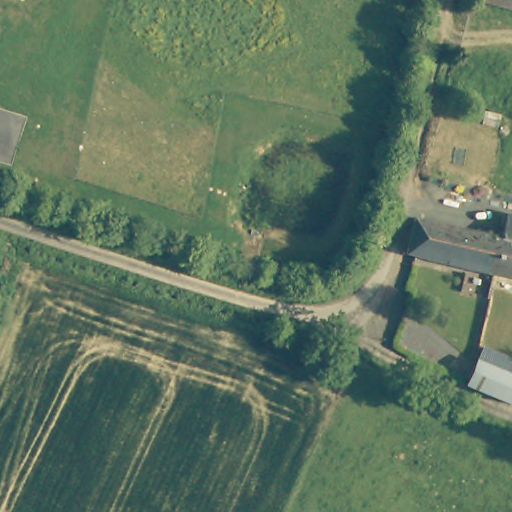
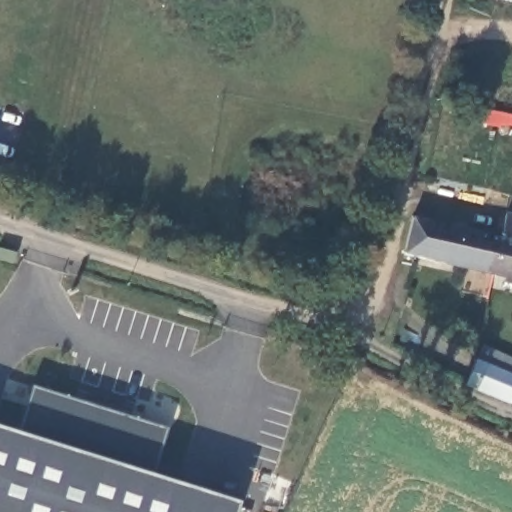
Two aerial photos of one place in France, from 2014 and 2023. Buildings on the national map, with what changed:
unchanged [(499,0),(512,0),(512,3),(499,0)]
unchanged [(501,234),(507,212),(512,213),(512,273),(495,269),(501,234)]
unchanged [(407,249),(415,213),(478,228),(498,233),(501,234),(495,269),(407,249)]
unchanged [(472,381),(482,355),(512,368),(512,397),(472,381)]
new [(34,386),(165,429),(152,476),(237,504),(235,512),(0,512),(0,428),(20,434),(34,386)]

